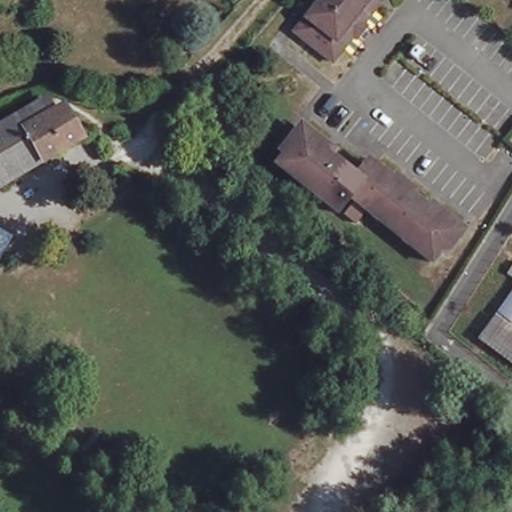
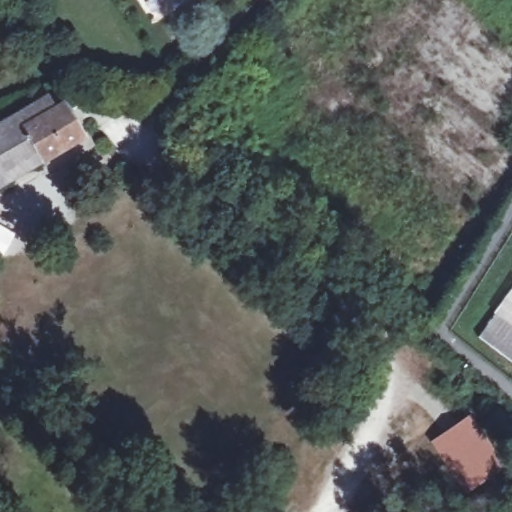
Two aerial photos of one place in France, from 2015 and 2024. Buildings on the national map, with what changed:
demolished [(355,36),(347,46),(335,60),(297,30),(320,0),(379,0),(380,1),(374,10),(368,18),(355,36)]
unchanged [(55,111),(65,105),(83,137),(0,187),(0,125),(47,97),(55,111)]
demolished [(276,163),(305,127),(328,145),(299,182),(276,163)]
demolished [(335,151),(360,171),(332,207),(307,187),(335,151)]
demolished [(367,176),(380,161),(401,177),(372,213),(352,196),(367,176)]
demolished [(407,182),(432,201),(402,236),(379,218),(407,182)]
demolished [(437,206),(462,226),(435,262),(408,241),(437,206)]
unchanged [(473,326),(487,308),(512,329),(512,359),(473,326)]
new [(473,412),(508,468),(465,496),(428,441),(473,412)]

